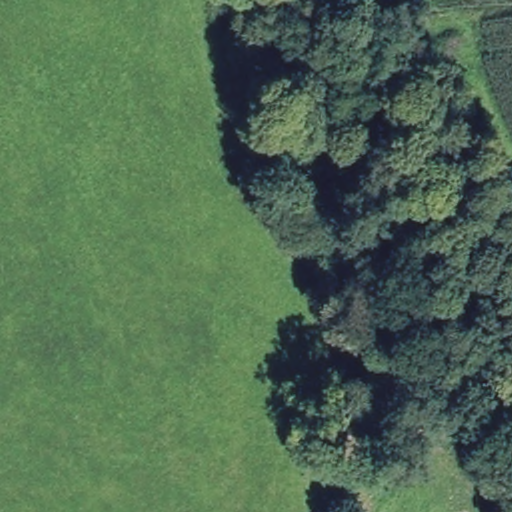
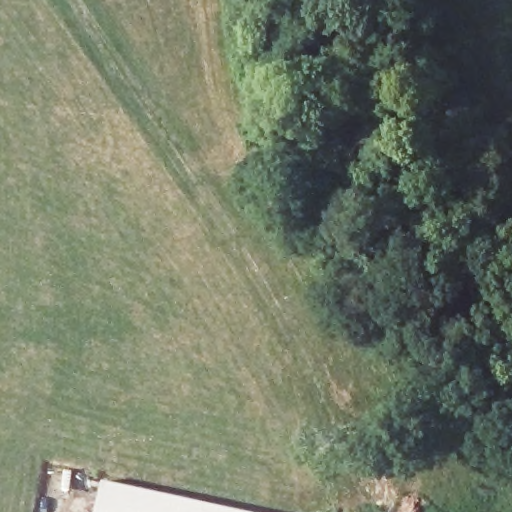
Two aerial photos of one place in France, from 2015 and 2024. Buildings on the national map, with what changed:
new [(101,478),(255,512),(94,512),(101,478)]

